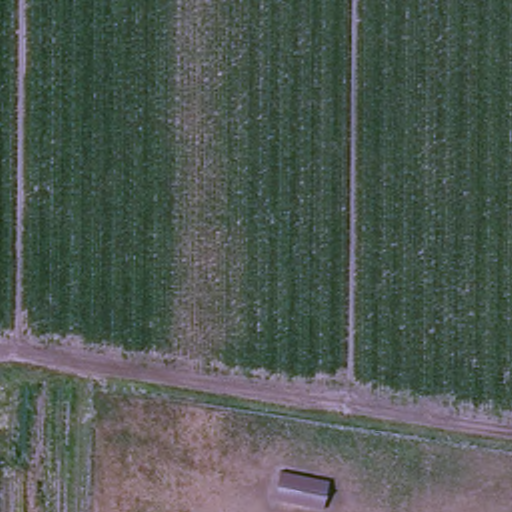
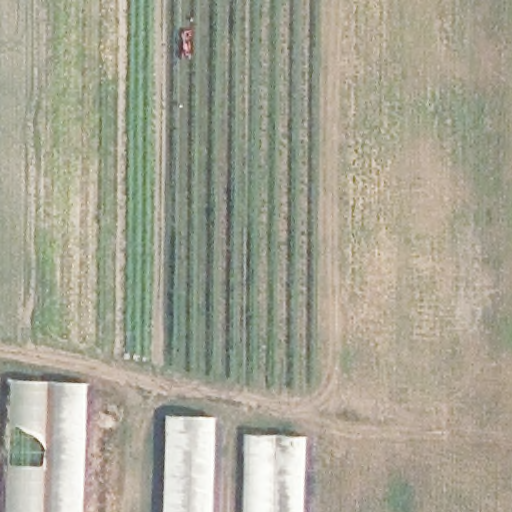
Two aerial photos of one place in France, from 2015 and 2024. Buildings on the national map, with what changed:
new [(84,384),(80,512),(3,512),(7,380),(84,384)]
new [(212,417),(211,437),(209,437),(210,478),(209,512),(159,512),(162,416),(212,417)]
new [(305,437),(302,512),(242,512),(245,434),(305,437)]

